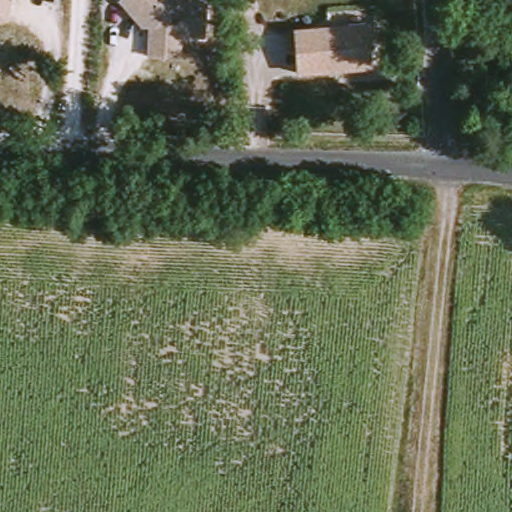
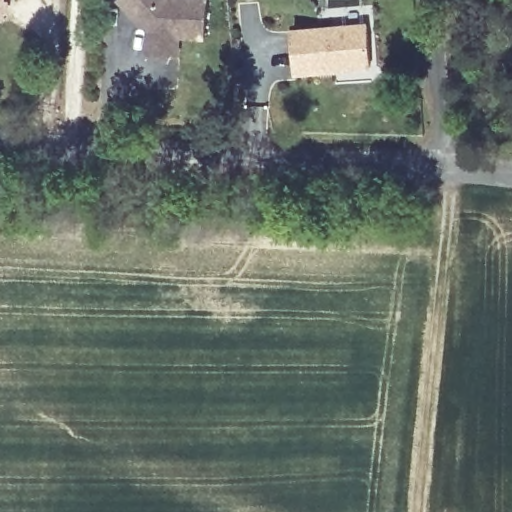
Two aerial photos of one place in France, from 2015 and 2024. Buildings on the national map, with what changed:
unchanged [(0,19),(0,0),(8,0),(8,19),(0,19)]
unchanged [(117,1),(118,0),(204,0),(202,40),(177,39),(176,59),(146,57),(148,27),(140,27),(134,20),(117,1)]
unchanged [(383,65),(308,69),(306,29),(381,24),(383,65)]

